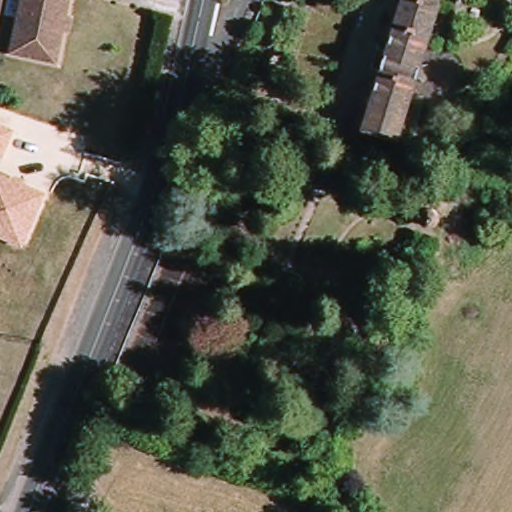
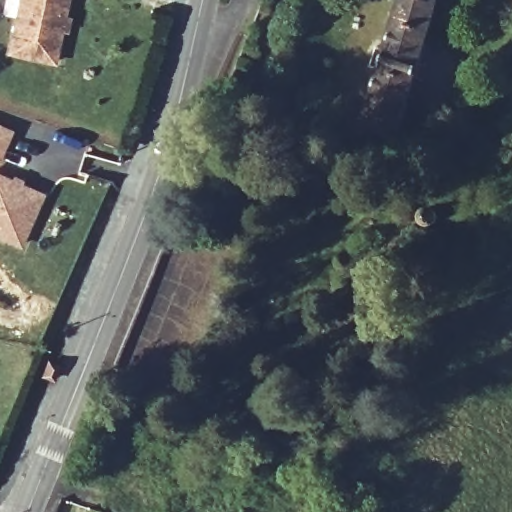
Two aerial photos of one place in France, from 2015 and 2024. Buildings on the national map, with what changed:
unchanged [(14,51),(25,0),(27,0),(69,10),(57,59),(14,51)]
unchanged [(69,10),(27,0),(71,0),(69,10)]
unchanged [(406,0),(440,0),(398,132),(367,122),(386,63),(375,59),(381,41),(392,44),(406,0)]
unchanged [(1,161),(0,161),(0,123),(14,128),(1,161)]
unchanged [(23,246),(0,237),(0,171),(46,191),(23,246)]
unchanged [(427,200),(430,201),(432,204),(433,207),(432,212),(432,216),(428,218),(425,219),(420,218),(416,215),(414,210),(415,207),(416,204),(419,201),(423,199),(427,200)]

